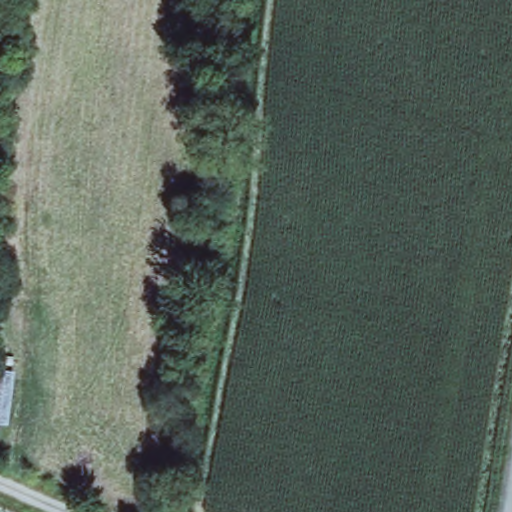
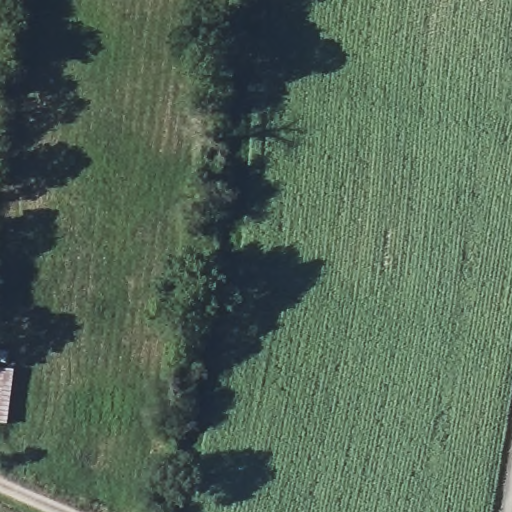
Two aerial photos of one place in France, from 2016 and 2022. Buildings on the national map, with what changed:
unchanged [(16,374),(11,419),(0,416),(0,370),(16,374)]

